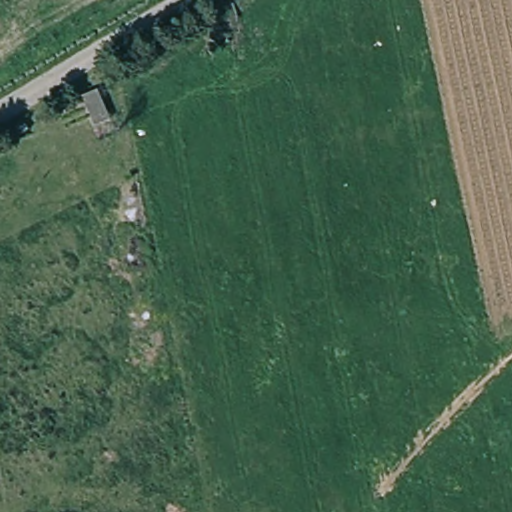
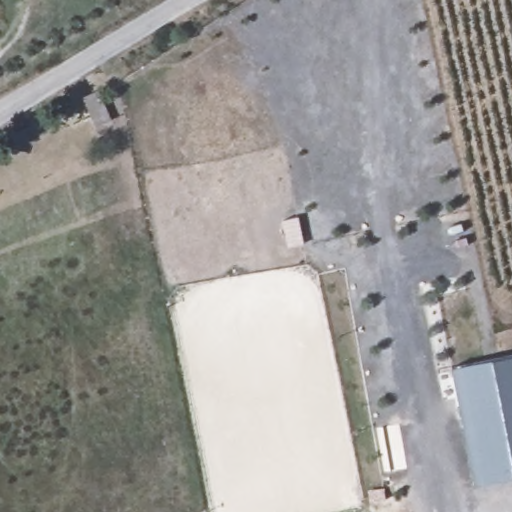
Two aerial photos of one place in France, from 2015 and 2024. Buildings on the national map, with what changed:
unchanged [(76,96),(93,86),(110,117),(93,127),(76,96)]
new [(512,356),(512,478),(475,486),(452,367),(512,356)]

